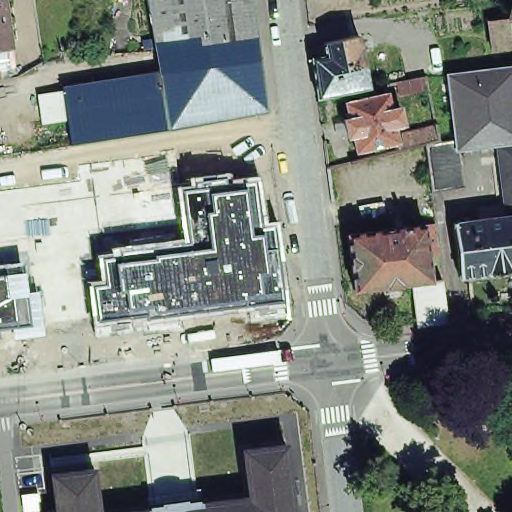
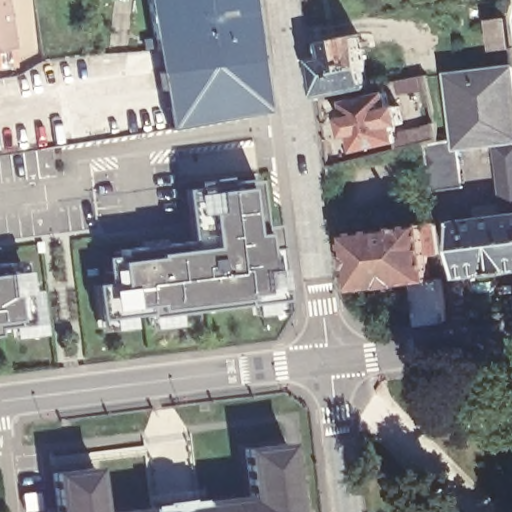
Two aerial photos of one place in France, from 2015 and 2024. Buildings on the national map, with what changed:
unchanged [(0,43),(0,0),(5,0),(11,41),(0,43)]
unchanged [(164,73),(161,51),(160,46),(149,48),(148,40),(158,39),(152,0),(259,0),(264,34),(274,108),(271,111),(174,128),(164,73)]
unchanged [(512,47),(498,49),(494,19),(512,17),(512,47)]
unchanged [(318,56),(330,54),(329,41),(364,34),(374,85),(323,95),(318,56)]
unchanged [(0,63),(0,43),(11,41),(14,60),(0,63)]
unchanged [(453,74),(512,67),(512,142),(503,143),(462,148),(461,138),(453,74)]
demolished [(145,75),(164,73),(174,128),(140,133),(76,143),(68,85),(96,81),(145,75)]
unchanged [(397,81),(426,75),(427,79),(429,90),(399,96),(397,81)]
unchanged [(462,148),(463,155),(467,187),(436,191),(429,144),(405,149),(403,140),(361,149),(357,134),(353,135),(349,118),(354,117),(351,100),(393,91),(396,107),(404,105),(408,123),(399,124),(402,134),(442,124),(445,139),(461,138),(462,148)]
unchanged [(466,275),(459,220),(511,214),(503,151),(503,143),(512,142),(512,271),(493,273),(493,272),(466,275)]
unchanged [(188,184),(186,178),(228,172),(230,178),(259,175),(266,220),(274,220),(287,318),(249,322),(247,309),(179,315),(181,329),(135,333),(108,334),(94,335),(88,281),(99,279),(96,254),(110,253),(109,245),(181,237),(174,186),(188,184)]
unchanged [(354,296),(347,240),(435,229),(436,238),(439,259),(427,260),(431,286),(414,288),(399,290),(399,292),(386,294),(385,292),(354,296)]
unchanged [(28,294),(39,292),(44,335),(0,340),(0,266),(23,263),(25,272),(28,294)]
unchanged [(418,329),(414,288),(431,286),(443,284),(446,309),(448,326),(418,329)]
demolished [(36,429),(39,455),(16,459),(13,433),(36,429)]
unchanged [(154,509),(167,507),(168,505),(188,503),(189,504),(203,503),(203,507),(254,501),(248,455),(291,450),(299,512),(154,512),(154,509)]
demolished [(30,466),(33,480),(19,482),(18,468),(30,466)]
unchanged [(54,477),(97,472),(103,512),(59,512),(54,477)]
unchanged [(38,509),(23,511),(21,495),(36,493),(38,509)]

